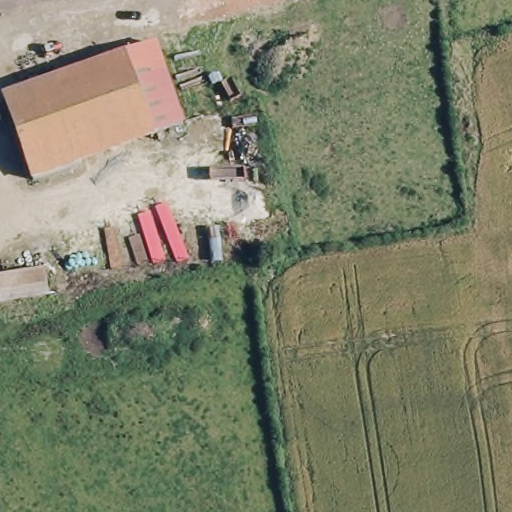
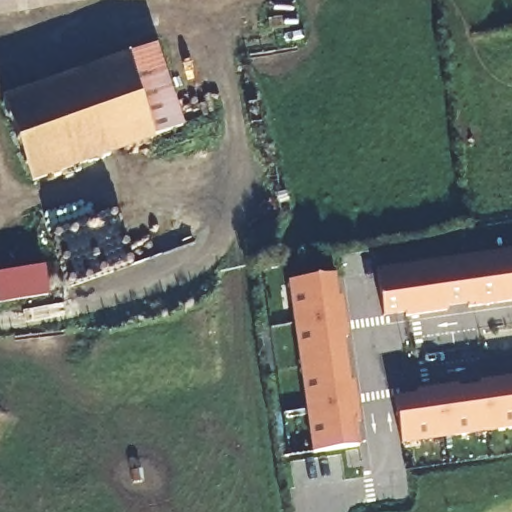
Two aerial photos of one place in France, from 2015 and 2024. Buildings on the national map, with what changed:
unchanged [(67,0),(0,12),(0,0),(67,0)]
unchanged [(182,126),(162,132),(153,135),(125,56),(142,50),(155,45),(182,126)]
unchanged [(153,135),(154,137),(30,181),(2,99),(125,56),(153,135)]
new [(512,298),(383,317),(376,269),(512,249),(512,298)]
unchanged [(44,270),(47,294),(47,295),(0,302),(0,277),(44,270)]
new [(288,281),(335,274),(339,297),(342,296),(349,338),(345,338),(361,422),(357,423),(360,446),(312,453),(288,281)]
new [(420,392),(419,389),(452,384),(454,388),(479,385),(477,380),(512,376),(512,429),(400,445),(394,398),(420,392)]

